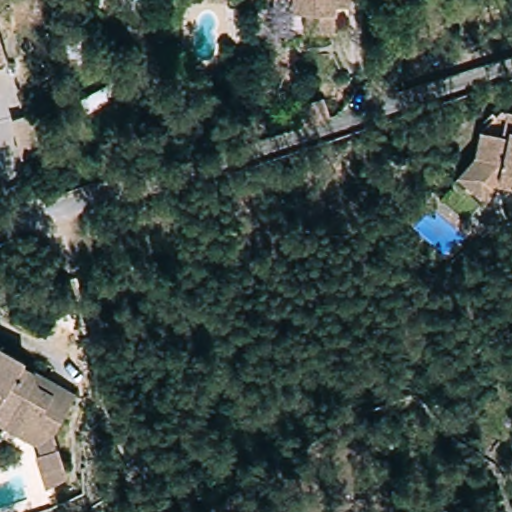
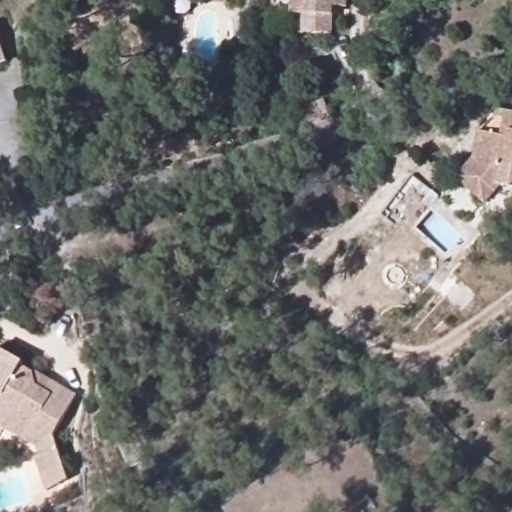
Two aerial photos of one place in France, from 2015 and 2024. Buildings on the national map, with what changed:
unchanged [(345,0),(345,9),(332,7),(332,35),(269,33),(270,0),(345,0)]
unchanged [(0,65),(0,31),(10,62),(0,65)]
unchanged [(312,112),(305,91),(331,85),(337,105),(312,112)]
unchanged [(471,155),(475,130),(497,134),(502,109),(512,111),(512,186),(498,184),(482,202),(452,175),(471,155)]
unchanged [(35,115),(49,158),(25,165),(13,121),(35,115)]
unchanged [(19,370),(32,378),(34,374),(79,400),(53,445),(66,475),(43,485),(31,457),(36,455),(33,449),(0,430),(0,351),(22,364),(19,370)]

